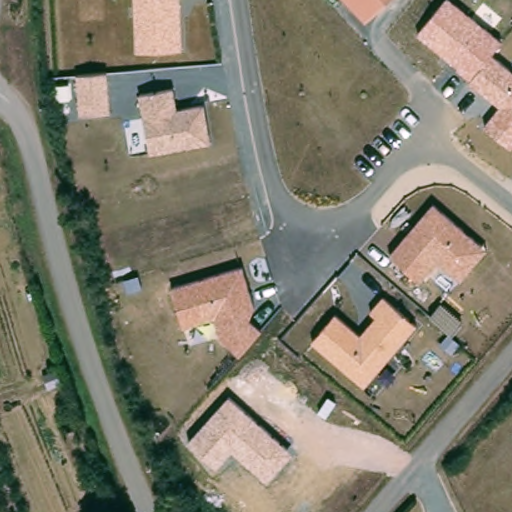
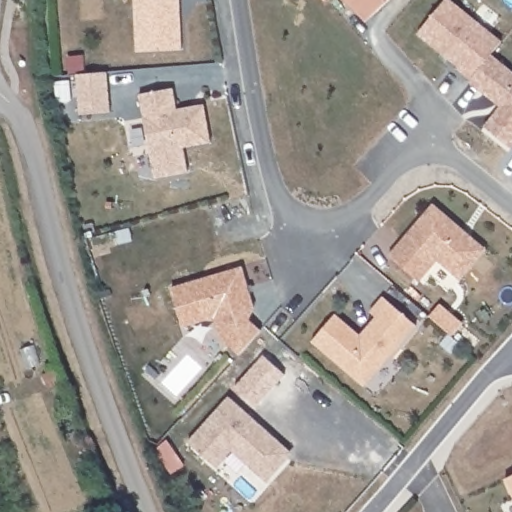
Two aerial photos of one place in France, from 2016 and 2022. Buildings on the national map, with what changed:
unchanged [(133,52),(132,0),(178,0),(181,50),(133,52)]
unchanged [(345,0),(388,0),(363,21),(345,0)]
unchanged [(451,0),(502,41),(492,54),(512,71),(512,149),(511,149),(483,128),(500,106),(471,80),(417,34),(445,0),(451,0)]
unchanged [(76,75),(108,73),(111,113),(79,115),(76,75)]
unchanged [(140,95),(173,89),(177,109),(205,105),(210,143),(150,154),(140,95)]
unchanged [(487,249),(461,280),(436,259),(417,282),(387,256),(430,202),(487,249)]
unchanged [(254,309),(249,318),(262,331),(239,358),(216,337),(212,319),(180,328),(168,285),(240,265),(254,309)]
unchanged [(359,333),(374,317),(367,311),(381,295),(415,326),(362,387),(310,342),(334,312),(359,333)]
unchanged [(232,452),(217,469),(187,444),(229,398),(293,452),(267,483),(232,452)]
new [(503,479),(512,475),(512,497),(503,479)]

